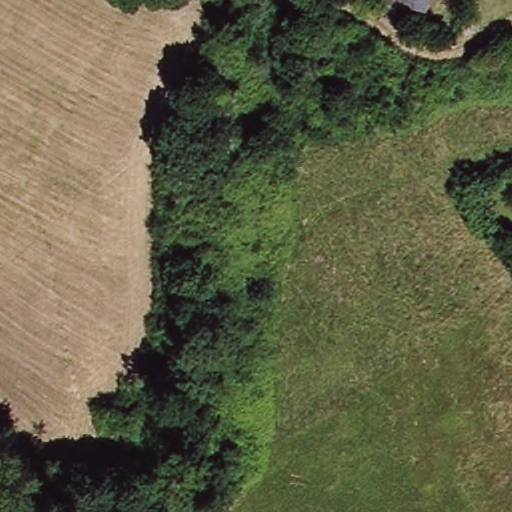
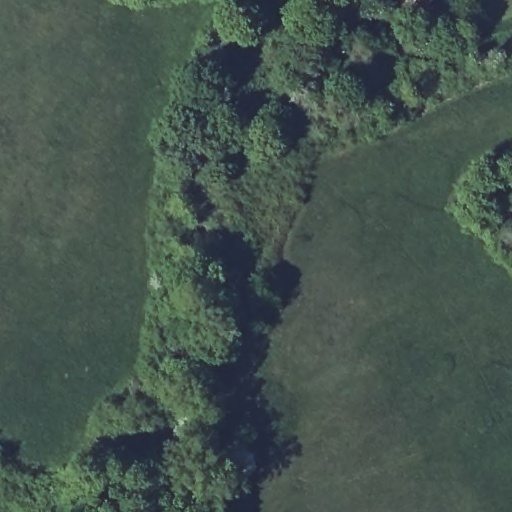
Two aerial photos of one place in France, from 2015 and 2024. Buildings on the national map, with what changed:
unchanged [(420,5),(408,0),(422,0),(420,5)]

